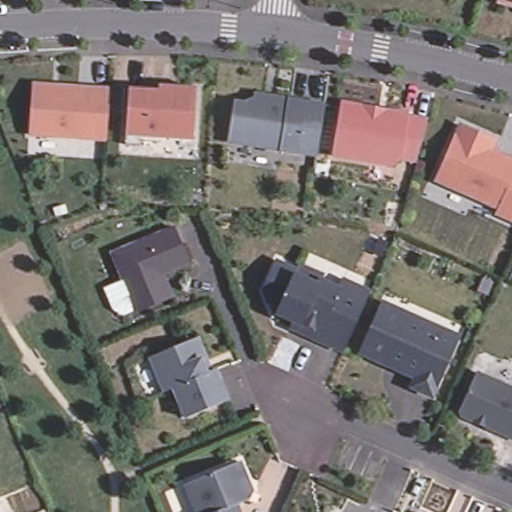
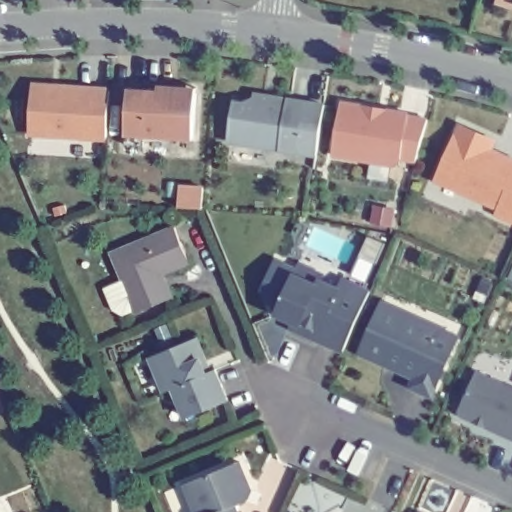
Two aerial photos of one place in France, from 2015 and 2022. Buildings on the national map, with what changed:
unchanged [(512,0),(512,6),(497,1),(497,0),(512,0)]
unchanged [(53,86),(52,91),(93,94),(93,89),(109,90),(106,135),(106,140),(28,135),(32,85),(53,86)]
unchanged [(143,136),(143,146),(124,145),(128,89),(158,91),(158,86),(196,89),(196,94),(193,140),(143,136)]
unchanged [(316,156),(227,141),(233,102),(243,104),(253,100),(253,94),(288,100),(324,105),(316,156)]
unchanged [(363,106),(362,111),(385,116),(386,111),(409,115),(408,116),(428,120),(427,124),(415,161),(400,159),(392,166),(331,155),(340,103),(363,106)]
unchanged [(436,181),(460,126),(481,135),(494,141),(491,151),(512,160),(512,221),(495,214),(498,209),(436,181)]
unchanged [(166,296),(136,308),(112,249),(174,223),(189,258),(161,269),(171,294),(166,296)]
unchanged [(294,322),(276,314),(279,308),(268,302),(271,294),(263,291),(276,261),(296,270),(299,265),(323,275),(320,281),(339,289),(343,280),(370,292),(343,352),(316,340),(291,329),(294,322)]
unchanged [(431,396),(412,387),(416,378),(361,353),(378,315),(383,304),(408,315),(458,337),(431,396)]
unchanged [(196,339),(204,358),(201,360),(207,374),(214,370),(228,401),(186,419),(173,389),(164,393),(149,358),(196,339)]
unchanged [(512,439),(485,427),(488,423),(479,419),(473,422),(462,417),(459,410),(476,373),(512,389),(512,439)]
unchanged [(169,493),(189,485),(230,468),(244,462),(256,491),(252,501),(241,505),(243,512),(177,512),(169,493)]

